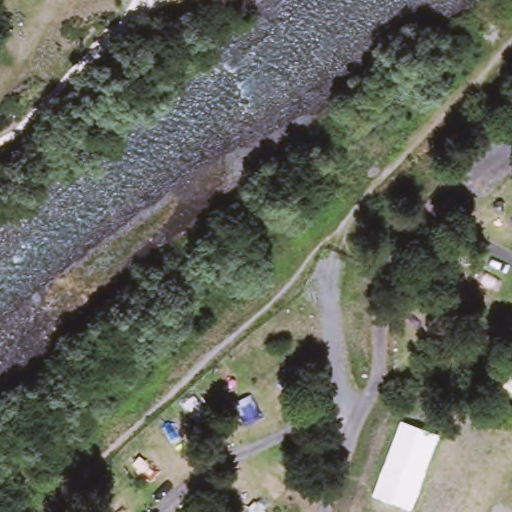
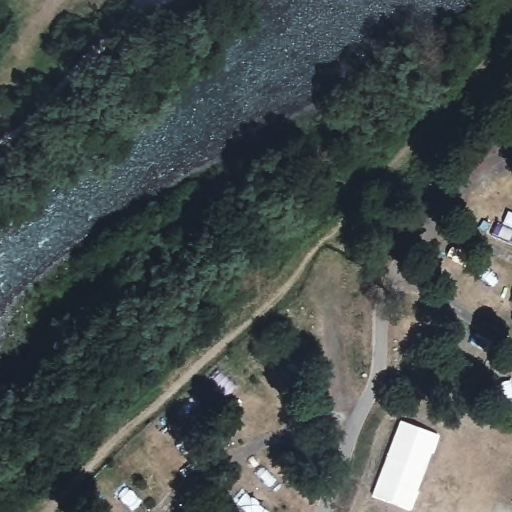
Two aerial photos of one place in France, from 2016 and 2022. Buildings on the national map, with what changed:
unchanged [(401,419),(438,434),(412,511),(372,495),(373,495),(401,419)]

